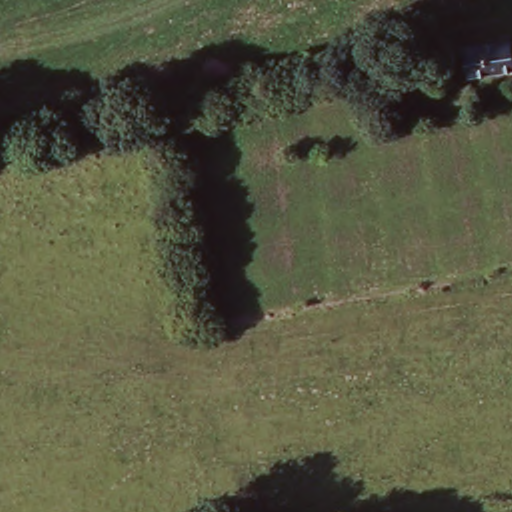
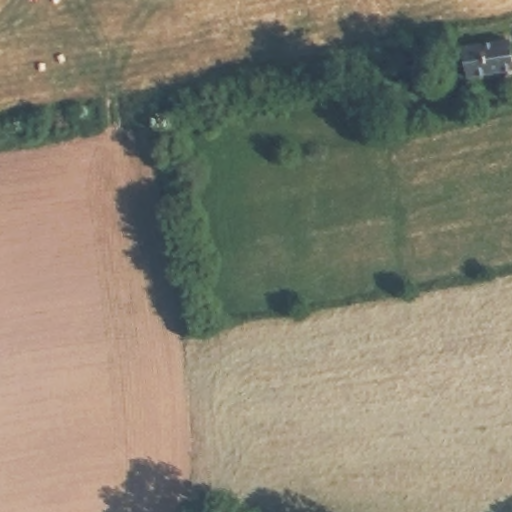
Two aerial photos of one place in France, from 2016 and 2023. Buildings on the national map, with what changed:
unchanged [(466,46),(475,43),(512,38),(512,71),(471,78),(466,46)]

